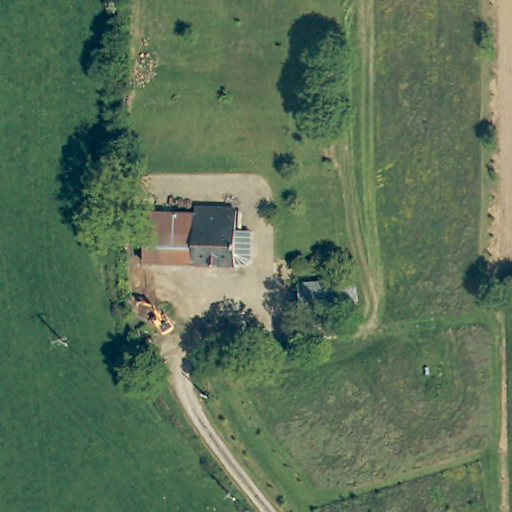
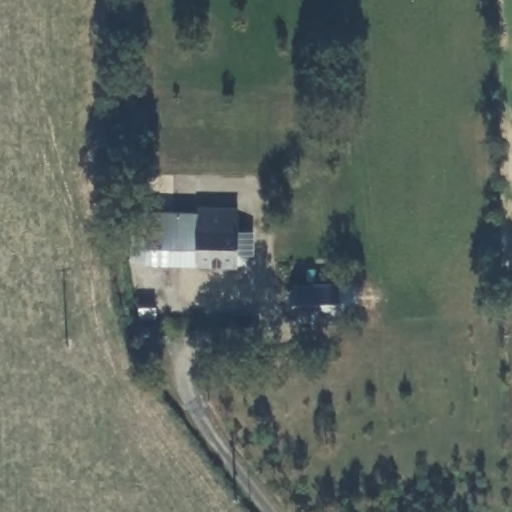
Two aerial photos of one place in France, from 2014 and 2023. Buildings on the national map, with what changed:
unchanged [(145,259),(146,205),(198,209),(198,261),(145,259)]
unchanged [(249,207),(249,225),(238,225),(237,262),(198,261),(198,209),(198,205),(249,207)]
unchanged [(339,283),(343,316),(303,321),(299,287),(339,283)]

